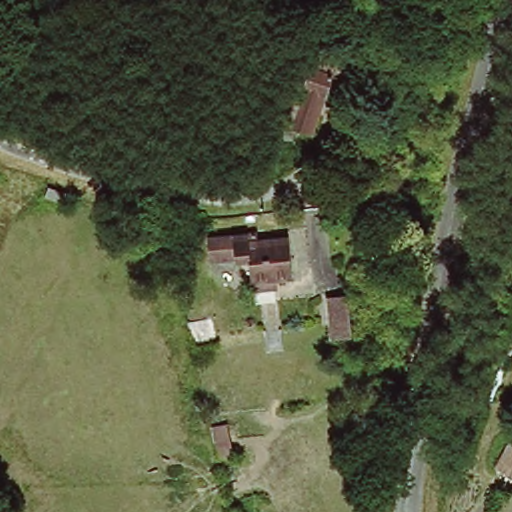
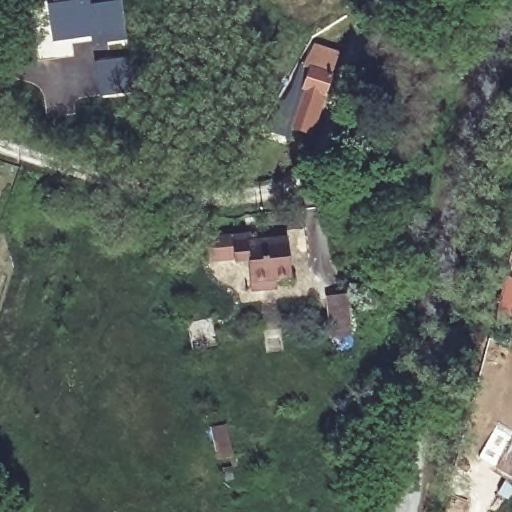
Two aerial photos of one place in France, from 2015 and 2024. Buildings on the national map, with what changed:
new [(53,0),(91,0),(91,2),(110,0),(122,0),(127,39),(92,43),(91,37),(52,41),(47,1),(53,1),(53,0)]
unchanged [(320,46),(339,54),(310,134),(295,128),(285,134),(272,131),(294,91),(302,89),(310,66),(314,63),(320,46)]
new [(130,55),(135,93),(98,96),(93,60),(130,55)]
unchanged [(295,278),(252,282),(250,257),(212,260),(210,240),(245,237),(245,243),(292,239),(295,278)]
unchanged [(351,298),(353,338),(348,338),(335,339),(331,300),(345,299),(351,298)]
unchanged [(230,424),(235,459),(218,461),(212,427),(230,424)]
unchanged [(512,443),(512,470),(501,464),(512,443)]

